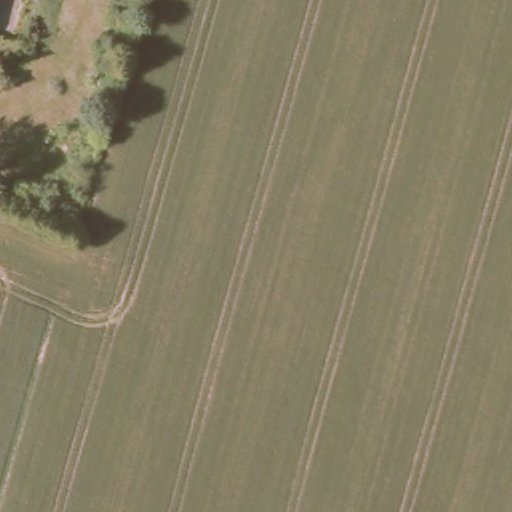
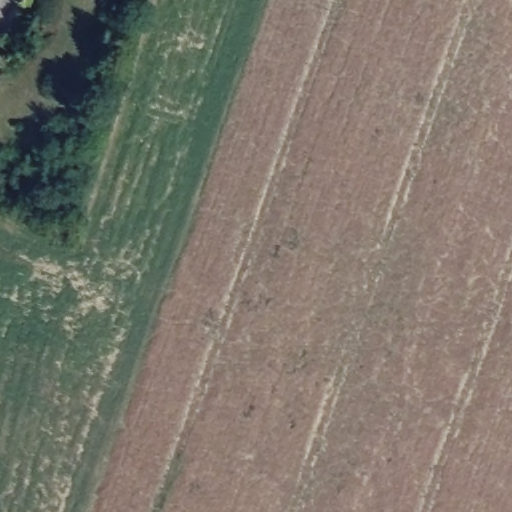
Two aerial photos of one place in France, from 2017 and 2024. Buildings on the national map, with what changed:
[]

